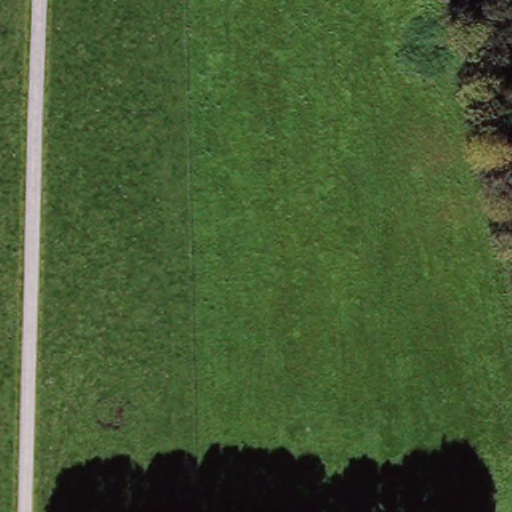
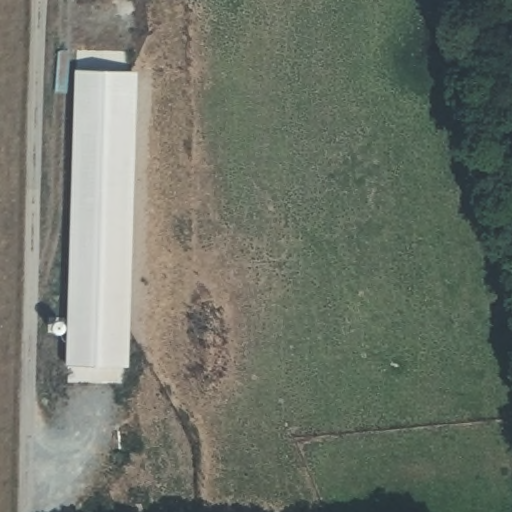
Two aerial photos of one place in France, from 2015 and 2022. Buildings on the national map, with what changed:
new [(138,70),(127,367),(71,368),(76,71),(138,70)]

